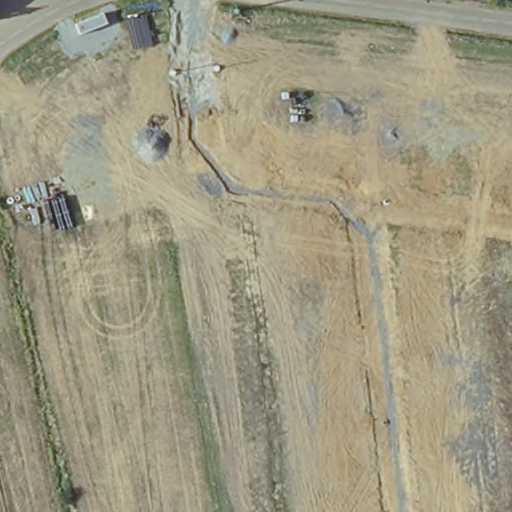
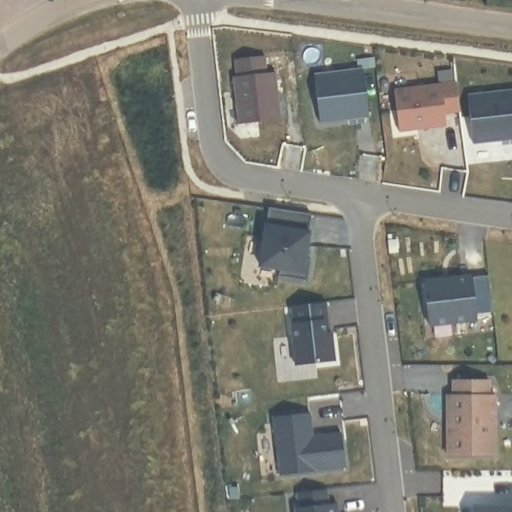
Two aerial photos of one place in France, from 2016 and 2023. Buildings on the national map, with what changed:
new [(266,58),(268,75),(277,75),(282,120),(241,125),(237,60),(266,58)]
new [(370,119),(322,125),(314,75),(362,70),(370,119)]
new [(457,84),(461,114),(446,115),(447,128),(400,134),(395,91),(457,84)]
new [(512,91),(512,141),(475,145),(469,96),(512,91)]
new [(270,209),(312,215),(306,257),(311,263),(307,282),(279,278),(281,270),(261,267),(270,209)]
new [(472,276),(477,322),(430,327),(425,282),(472,276)]
new [(294,308),(327,305),(329,322),(331,335),(333,335),(337,363),(298,367),(293,325),(296,325),(294,308)]
new [(450,398),(456,398),(456,383),(497,383),(497,460),(450,461),(450,398)]
new [(313,435),(342,432),(345,468),(281,476),(275,418),(311,415),(313,435)]
new [(302,495),(332,491),(333,506),(342,505),(343,512),(299,512),(299,510),(303,510),(302,495)]
new [(512,508),(512,512),(476,512),(476,508),(512,508)]

